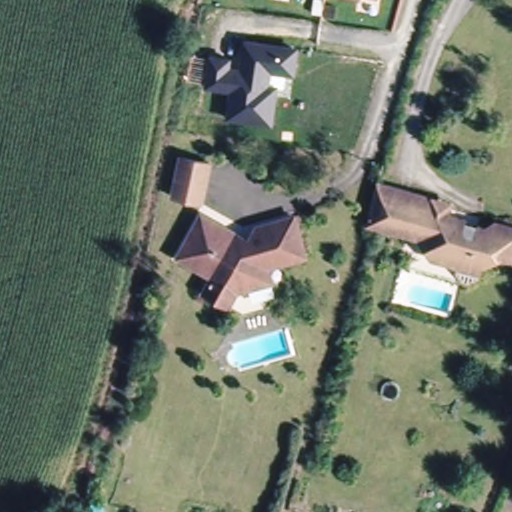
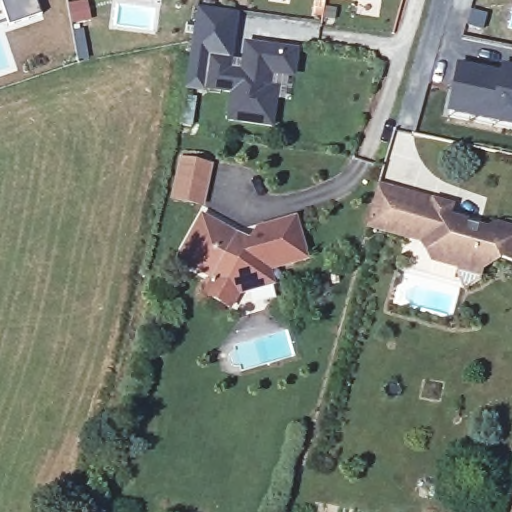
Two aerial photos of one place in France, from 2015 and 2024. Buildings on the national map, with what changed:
new [(41,12),(10,23),(1,1),(0,1),(0,0),(36,0),(41,12)]
new [(244,63),(246,67),(245,73),(230,71),(230,61),(211,58),(207,89),(206,93),(185,90),(196,7),(240,14),(234,60),(244,61),(244,63)]
unchanged [(339,24),(325,22),(326,9),(340,10),(339,24)]
unchanged [(276,97),(272,126),(228,120),(232,92),(207,89),(211,58),(230,61),(230,71),(245,73),(246,67),(244,63),(246,44),(294,51),(297,55),(295,73),(290,76),(271,73),(268,88),(276,97)]
new [(451,111),(460,65),(502,73),(504,66),(511,67),(512,67),(512,123),(451,111)]
unchanged [(198,210),(168,204),(176,165),(206,171),(198,210)]
unchanged [(471,231),(472,227),(482,230),(492,225),(512,230),(512,263),(495,259),(477,269),(473,279),(461,287),(455,274),(456,269),(427,261),(415,241),(362,227),(373,185),(428,201),(447,206),(445,216),(461,221),(460,228),(471,231)]
unchanged [(255,293),(234,299),(225,313),(200,298),(208,284),(174,264),(197,221),(245,248),(253,234),(290,223),(302,263),(264,274),(268,289),(255,293)]

